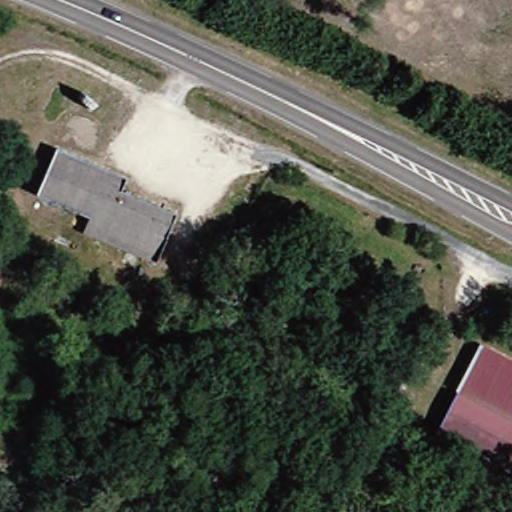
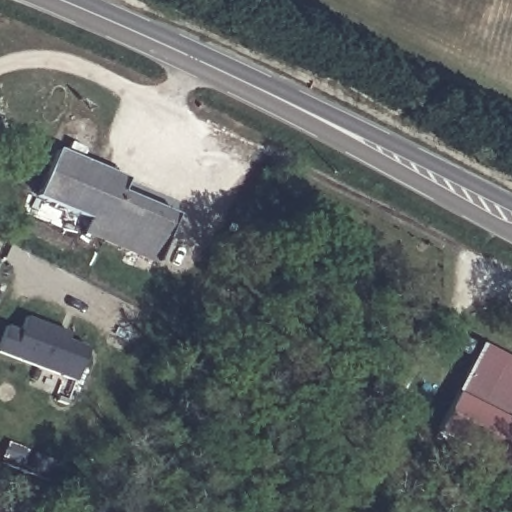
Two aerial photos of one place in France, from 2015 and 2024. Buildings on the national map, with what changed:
unchanged [(119,167),(135,174),(130,186),(184,211),(166,250),(161,260),(91,228),(97,214),(45,187),(66,143),(119,167)]
new [(22,331),(27,318),(71,333),(69,341),(89,347),(77,380),(0,352),(0,345),(6,325),(22,331)]
unchanged [(454,405),(484,344),(512,359),(512,468),(440,431),(454,405)]
unchanged [(356,383),(362,373),(388,388),(383,397),(356,383)]

